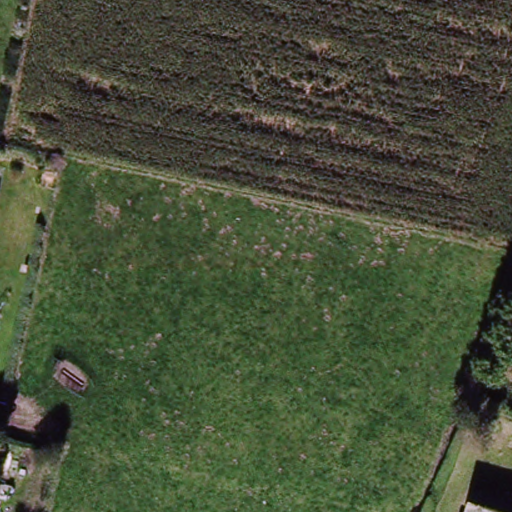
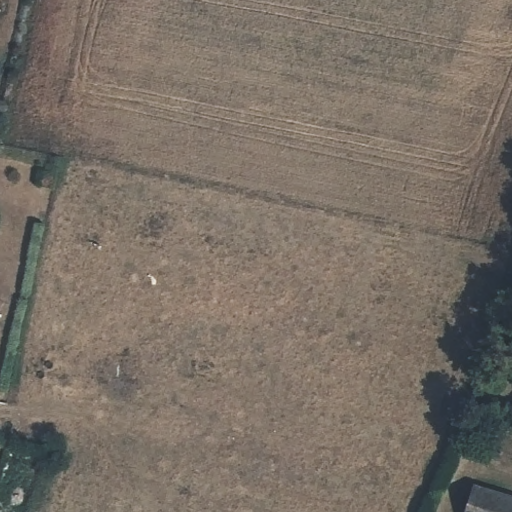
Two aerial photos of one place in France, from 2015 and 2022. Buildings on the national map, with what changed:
unchanged [(466,504),(479,474),(512,488),(512,512),(486,512),(466,504)]

